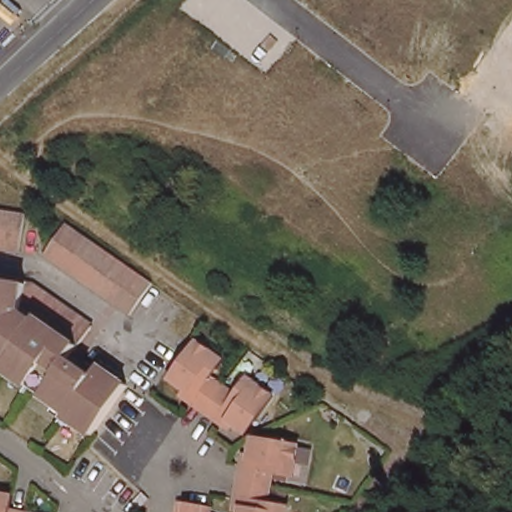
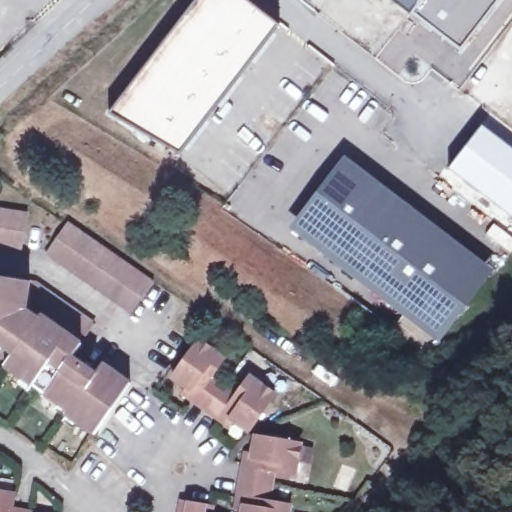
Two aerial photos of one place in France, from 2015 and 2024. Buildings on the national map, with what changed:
new [(195,0),(248,0),(279,24),(204,123),(180,154),(110,111),(128,85),(195,0)]
new [(411,14),(394,0),(422,0),(414,11),(411,14)]
new [(501,0),(463,49),(414,11),(422,0),(501,0)]
new [(481,124),(512,147),(512,218),(447,168),(481,124)]
new [(343,166),(484,274),(439,333),(298,225),(343,166)]
unchanged [(25,249),(0,246),(0,207),(29,211),(25,249)]
unchanged [(153,283),(131,315),(42,258),(63,226),(153,283)]
unchanged [(80,352),(103,367),(110,357),(138,376),(104,428),(70,404),(73,399),(10,358),(19,346),(5,335),(0,334),(0,287),(0,288),(1,272),(38,275),(103,318),(80,352)]
unchanged [(225,420),(198,402),(186,394),(191,387),(176,377),(201,340),(228,358),(216,376),(242,394),(255,376),(280,393),(256,429),(243,421),(238,429),(225,420)]
unchanged [(243,496),(246,480),(248,464),(251,449),(259,451),(262,434),(307,441),(301,473),(281,469),(278,485),(274,501),(296,504),(295,512),(249,512),(241,510),(243,496)]
demolished [(14,512),(0,512),(0,495),(16,498),(14,512)]
unchanged [(186,498),(215,504),(214,512),(183,512),(186,498)]

